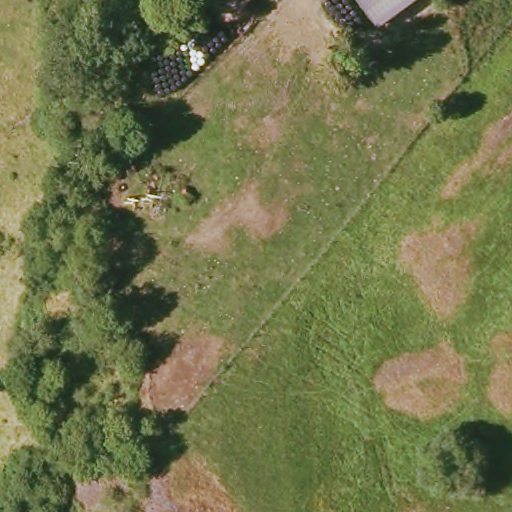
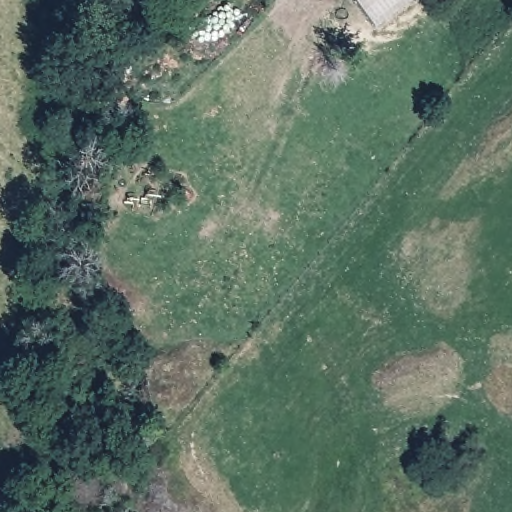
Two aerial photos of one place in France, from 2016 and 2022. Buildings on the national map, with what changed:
unchanged [(354,0),(405,0),(373,25),(354,0)]

